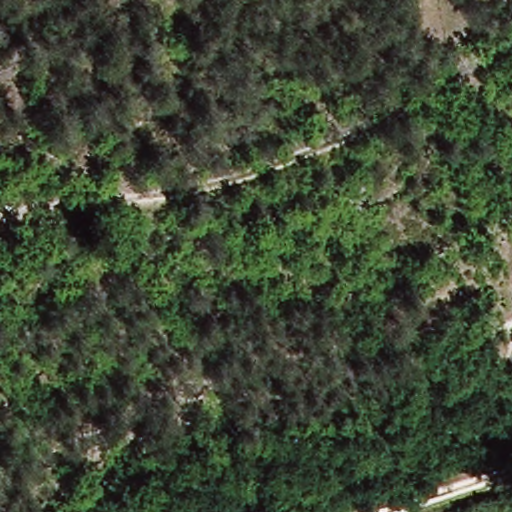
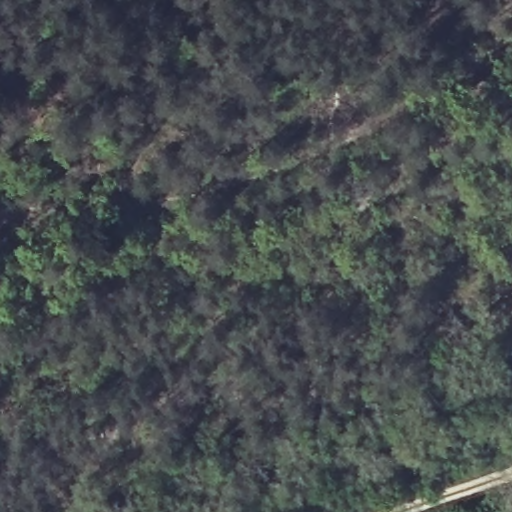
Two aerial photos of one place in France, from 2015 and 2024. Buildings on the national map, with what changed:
[]

